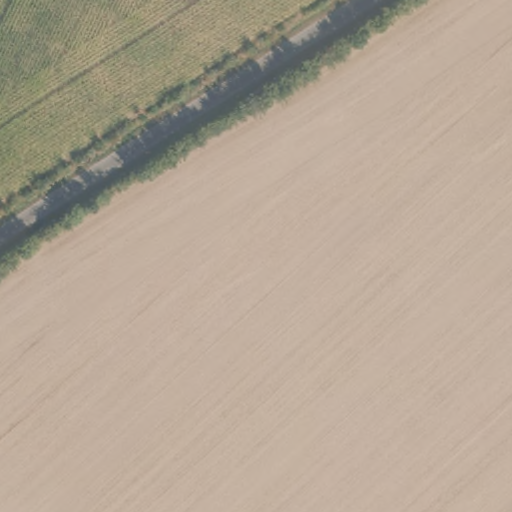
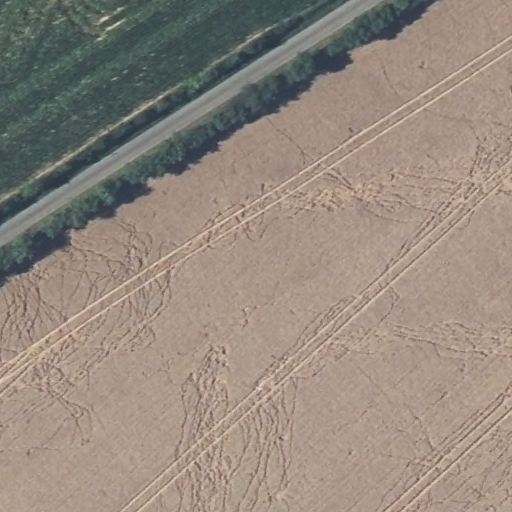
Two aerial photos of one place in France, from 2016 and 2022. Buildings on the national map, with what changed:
[]

